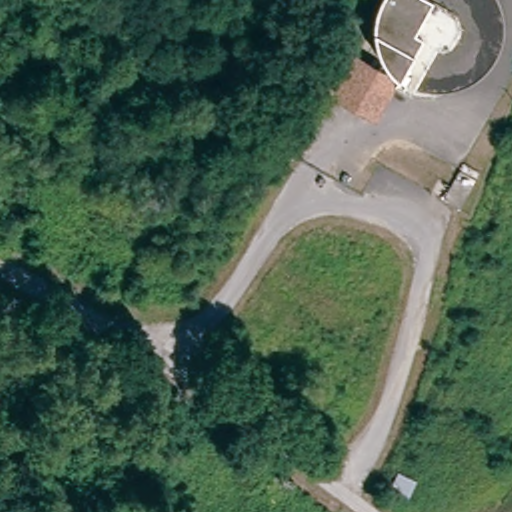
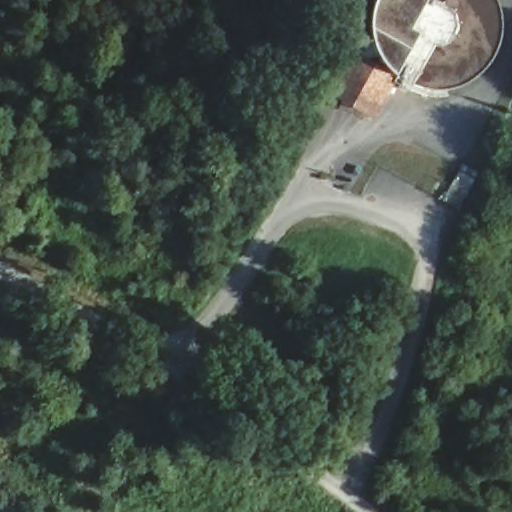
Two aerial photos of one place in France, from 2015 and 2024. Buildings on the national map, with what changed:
unchanged [(371,116),(333,94),(353,58),(391,79),(371,116)]
unchanged [(460,164),(477,174),(456,210),(440,202),(460,164)]
unchanged [(410,505),(388,493),(400,469),(423,480),(410,505)]

